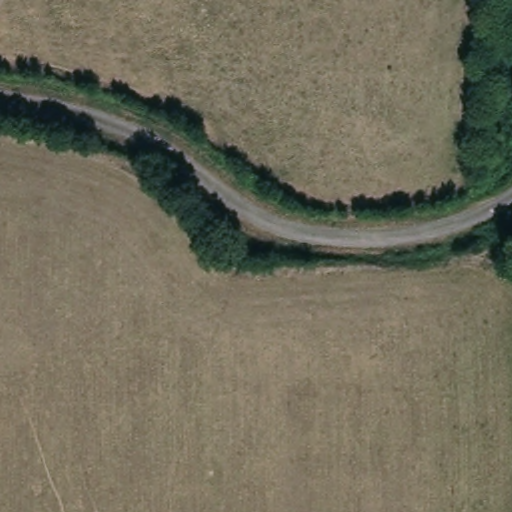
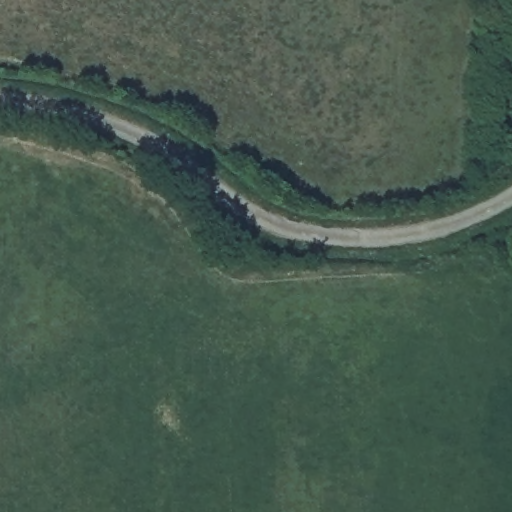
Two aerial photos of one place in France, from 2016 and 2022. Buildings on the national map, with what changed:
[]

